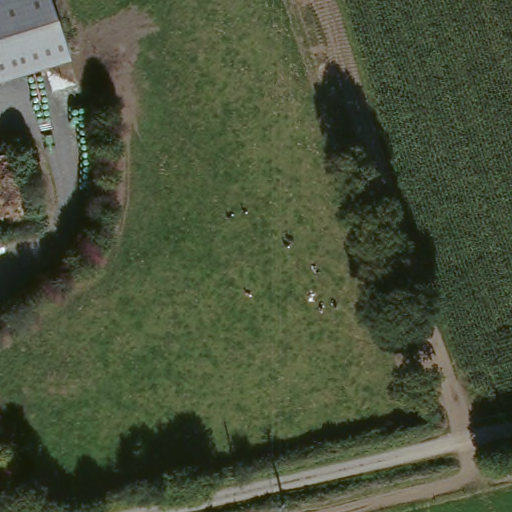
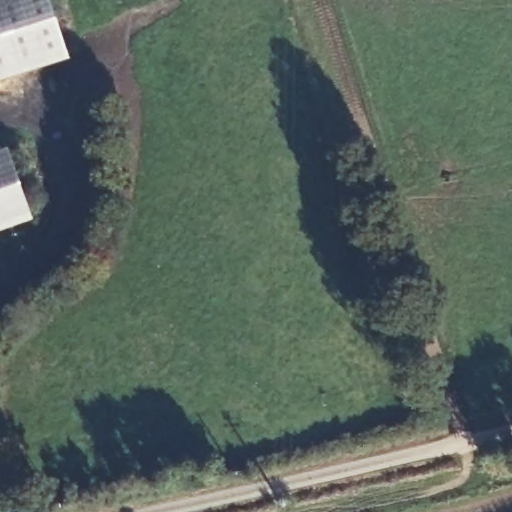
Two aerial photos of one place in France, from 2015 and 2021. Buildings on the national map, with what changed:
unchanged [(43,0),(61,51),(0,74),(0,0),(43,0)]
new [(34,221),(0,234),(0,151),(8,149),(34,221)]

